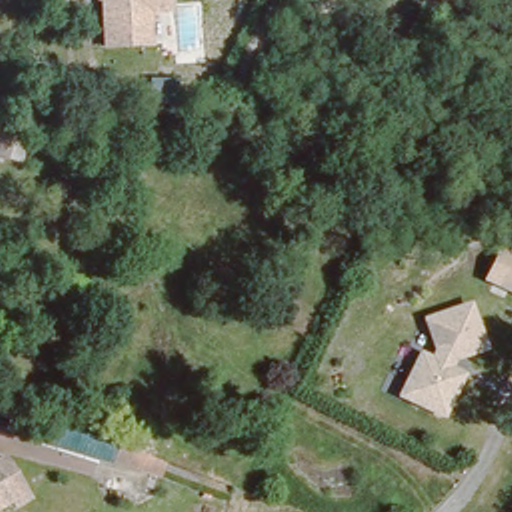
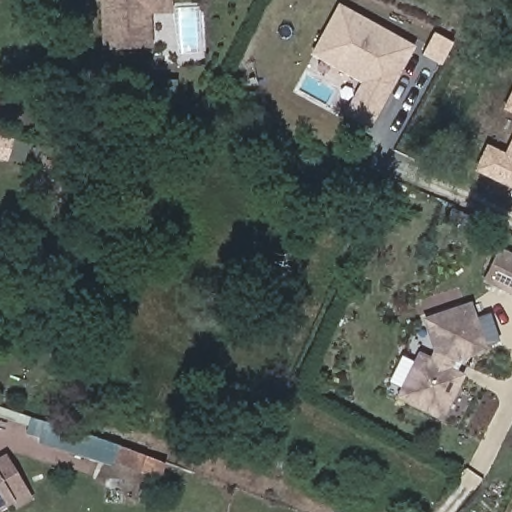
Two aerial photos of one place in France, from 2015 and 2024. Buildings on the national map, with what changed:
unchanged [(150,14),(151,48),(101,50),(99,0),(171,0),(172,12),(150,14)]
new [(339,3),(417,46),(371,130),(345,114),(360,83),(310,55),(339,3)]
new [(436,32),(454,42),(441,65),(423,54),(436,32)]
new [(504,110),(512,91),(512,114),(504,110)]
new [(476,170),(488,144),(505,151),(512,137),(512,188),(476,170)]
unchanged [(481,282),(498,244),(512,251),(512,296),(481,282)]
unchanged [(450,356),(443,370),(456,376),(436,415),(396,395),(417,356),(428,361),(434,351),(424,320),(465,307),(478,347),(450,356)]
unchanged [(146,471),(95,454),(43,437),(46,422),(73,430),(100,438),(151,455),(146,471)]
unchanged [(31,500),(18,509),(14,501),(0,509),(0,461),(6,457),(31,500)]

